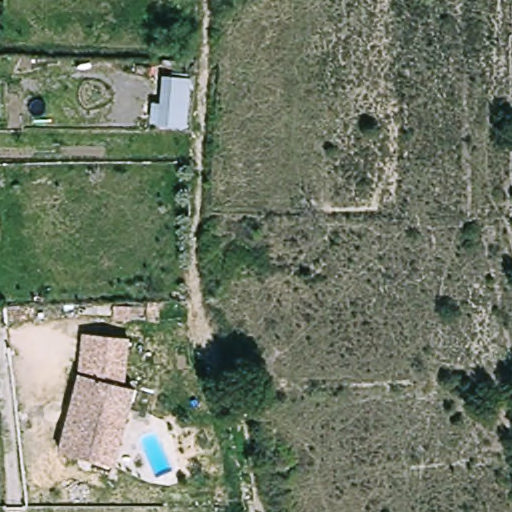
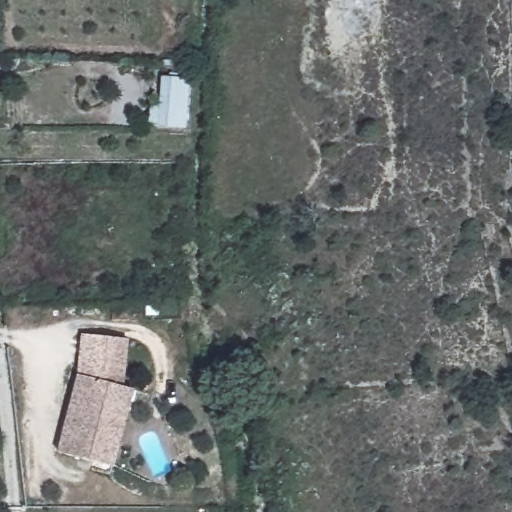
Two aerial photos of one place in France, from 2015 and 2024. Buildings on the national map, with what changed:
unchanged [(178,70),(162,69),(163,59),(178,60),(178,70)]
unchanged [(158,76),(195,79),(192,131),(154,128),(158,76)]
unchanged [(93,468),(57,455),(83,380),(91,339),(134,348),(125,394),(136,398),(125,428),(109,473),(93,468)]

